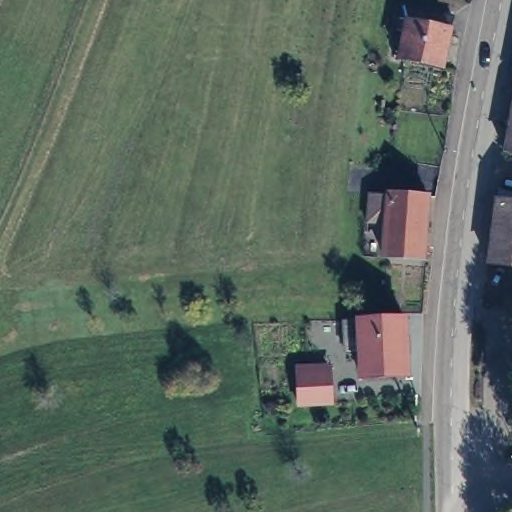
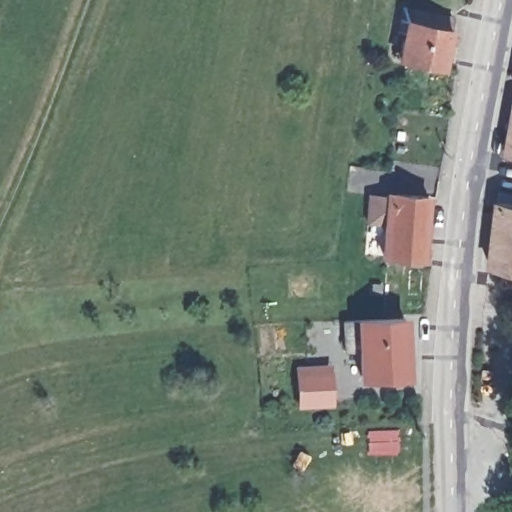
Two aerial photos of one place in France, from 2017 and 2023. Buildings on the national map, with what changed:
unchanged [(452,22),(447,49),(443,72),(399,62),(404,36),(399,34),(404,13),(452,22)]
unchanged [(512,87),(510,87),(512,79),(512,87)]
unchanged [(505,114),(508,100),(512,100),(512,152),(499,150),(505,114)]
unchanged [(390,219),(377,218),(380,189),(394,190),(394,187),(435,192),(430,254),(387,250),(390,219)]
unchanged [(512,200),(512,266),(489,263),(497,198),(512,200)]
unchanged [(414,308),(415,364),(370,365),(369,340),(355,339),(354,309),(414,308)]
unchanged [(330,375),(330,408),(298,410),(297,376),(330,375)]

